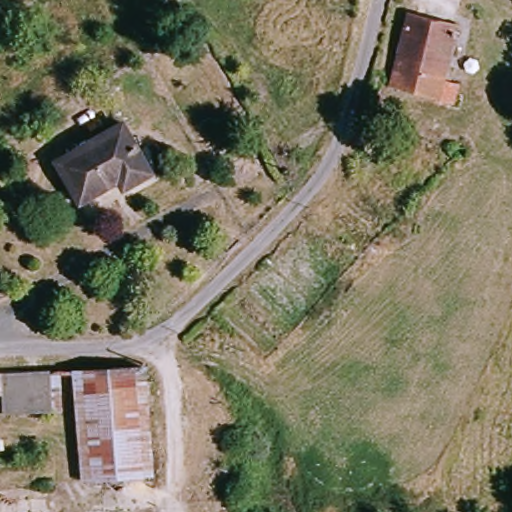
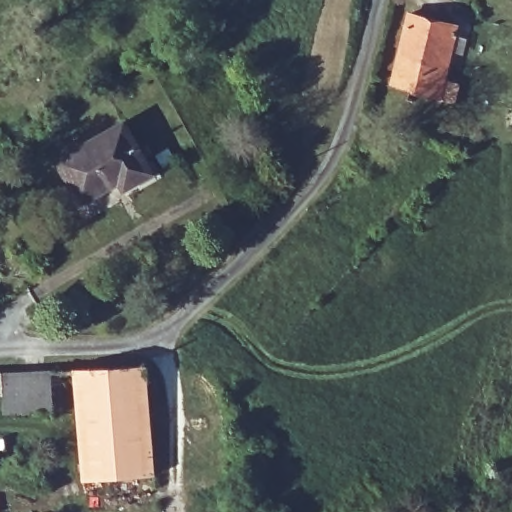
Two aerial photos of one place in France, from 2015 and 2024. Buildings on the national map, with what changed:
unchanged [(392,59),(404,14),(456,28),(444,84),(456,86),(452,106),(417,95),(371,84),(376,55),(392,59)]
unchanged [(437,124),(421,116),(425,107),(442,115),(437,124)]
unchanged [(78,206),(55,165),(124,126),(153,177),(127,192),(121,184),(78,206)]
unchanged [(147,369),(156,480),(82,487),(71,374),(147,369)]
unchanged [(57,371),(58,395),(0,399),(0,373),(57,371)]
unchanged [(10,456),(11,477),(0,477),(0,457),(10,456)]

